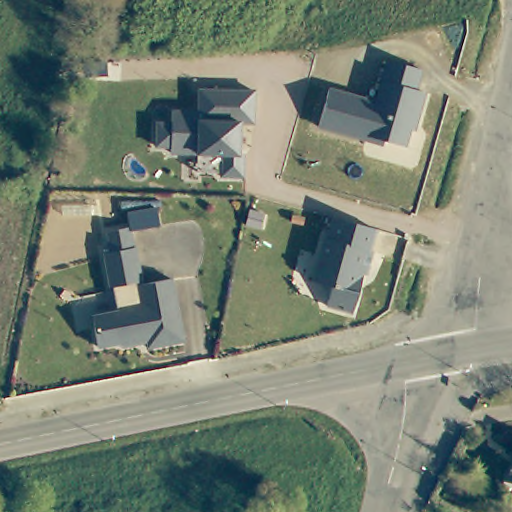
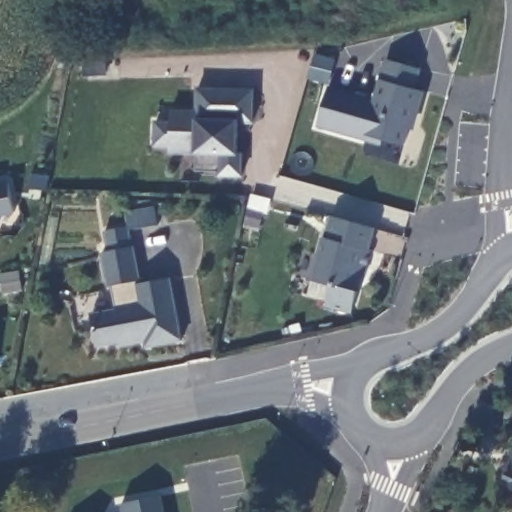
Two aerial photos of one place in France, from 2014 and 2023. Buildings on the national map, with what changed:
unchanged [(417,62),(412,82),(421,85),(413,111),(408,110),(401,139),(362,128),(362,132),(314,119),(325,80),(371,94),(383,52),(417,62)]
unchanged [(254,123),(240,122),(239,152),(244,154),(242,177),(219,177),(219,171),(195,170),(195,155),(169,154),(169,147),(155,146),(156,120),(169,120),(169,109),(197,109),(197,88),(254,89),(254,123)]
new [(14,215),(0,217),(0,185),(8,182),(14,215)]
unchanged [(372,221),(366,243),(368,244),(362,267),(353,265),(348,283),(355,285),(349,305),(323,298),(328,279),(308,274),(321,231),(322,231),(328,210),(372,221)]
unchanged [(180,335),(144,342),(142,332),(132,334),(130,338),(117,341),(115,340),(112,338),(94,341),(88,310),(113,305),(109,281),(106,282),(99,247),(106,246),(102,226),(126,221),(130,242),(131,241),(132,250),(137,275),(135,276),(135,279),(167,273),(180,335)]
unchanged [(498,487),(507,468),(511,470),(512,466),(512,493),(498,487)]
new [(122,498),(162,490),(167,512),(124,512),(122,498)]

